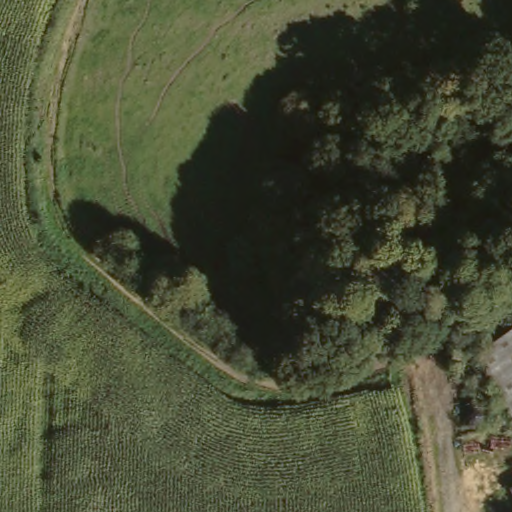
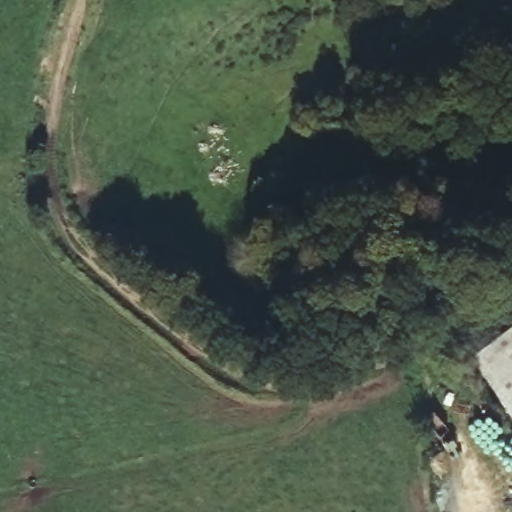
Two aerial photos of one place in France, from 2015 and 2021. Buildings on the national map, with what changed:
unchanged [(469,362),(512,329),(512,417),(469,362)]

